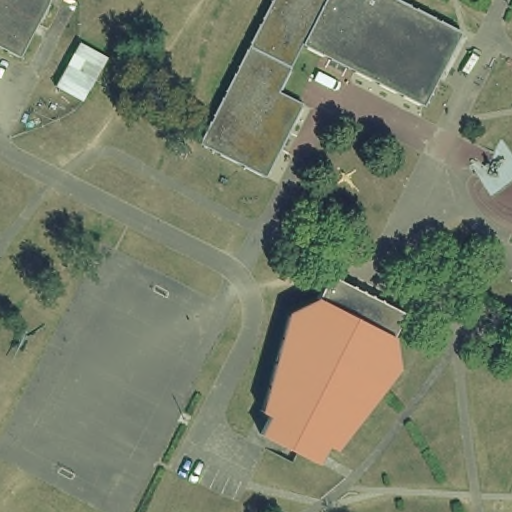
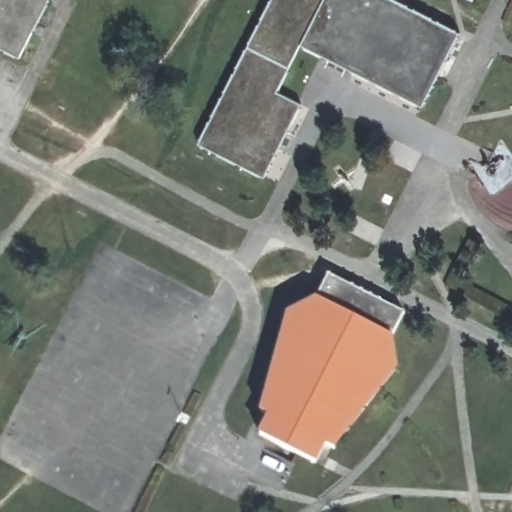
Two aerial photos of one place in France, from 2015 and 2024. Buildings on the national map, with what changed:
unchanged [(19,54),(0,44),(0,0),(47,0),(19,54)]
unchanged [(458,31),(424,103),(304,43),(278,90),(301,105),(265,174),(201,140),(272,0),(401,0),(458,31)]
unchanged [(267,413),(261,409),(286,313),(316,298),(328,274),(404,311),(394,336),(398,369),(334,449),(326,445),(316,460),(261,431),(267,413)]

